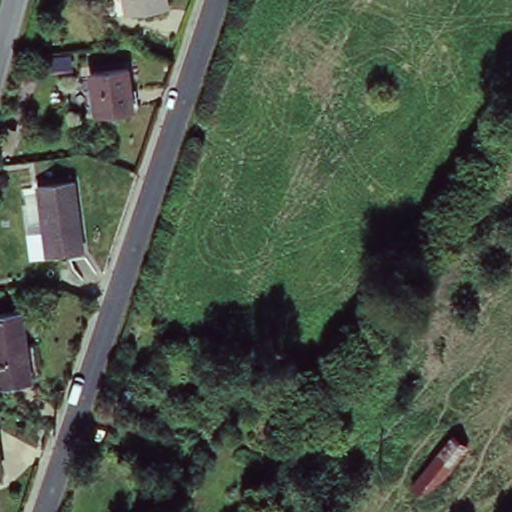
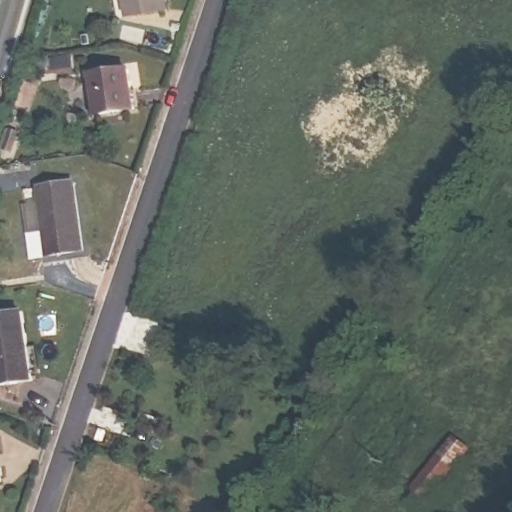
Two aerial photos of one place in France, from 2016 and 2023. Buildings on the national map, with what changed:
unchanged [(174,5),(135,17),(130,0),(173,0),(174,5)]
unchanged [(76,16),(78,31),(52,35),(51,19),(76,16)]
unchanged [(128,70),(133,112),(97,117),(93,74),(128,70)]
unchanged [(73,182),(84,251),(50,257),(41,187),(73,182)]
unchanged [(20,314),(31,381),(0,384),(0,316),(20,314)]
unchanged [(458,462),(434,498),(416,487),(442,451),(458,462)]

